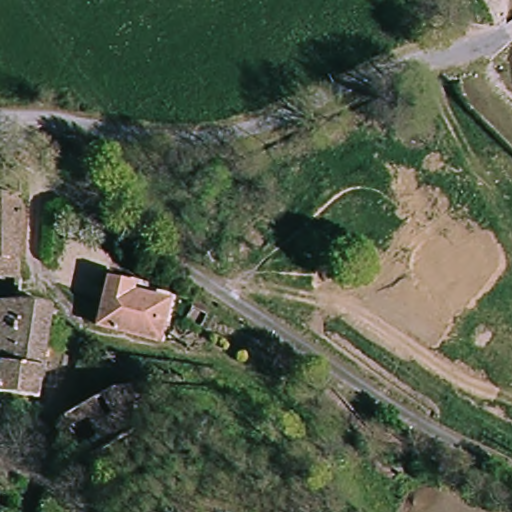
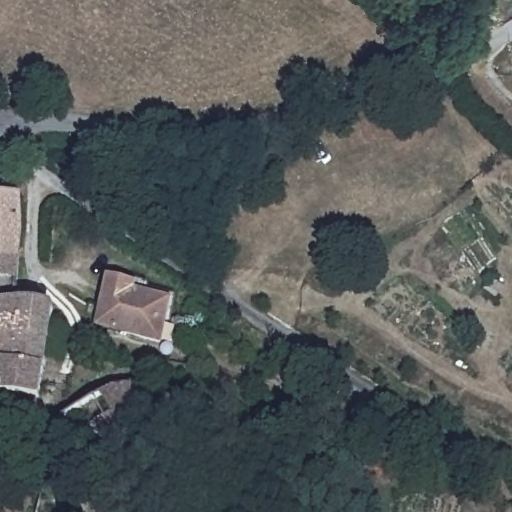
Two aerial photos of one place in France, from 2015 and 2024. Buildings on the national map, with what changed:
unchanged [(25,228),(18,266),(0,265),(0,199),(26,200),(25,228)]
unchanged [(18,266),(10,294),(0,293),(0,265),(18,266)]
unchanged [(163,339),(100,325),(111,278),(135,284),(134,292),(171,301),(163,339)]
unchanged [(52,310),(35,395),(0,393),(0,372),(3,364),(0,363),(0,306),(25,306),(52,310)]
unchanged [(121,460),(97,470),(87,447),(75,452),(68,446),(52,428),(57,420),(116,396),(145,393),(151,412),(130,419),(134,433),(141,455),(121,460)]

